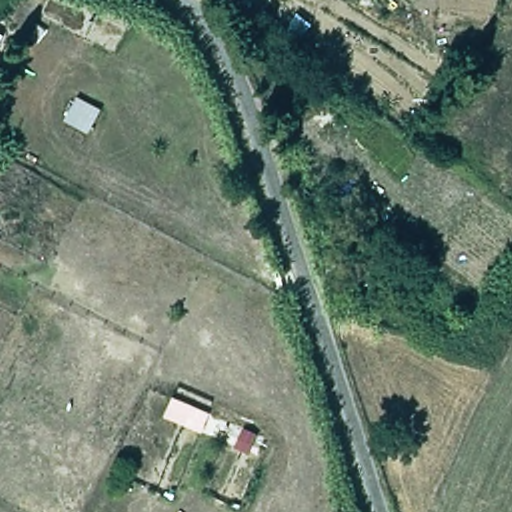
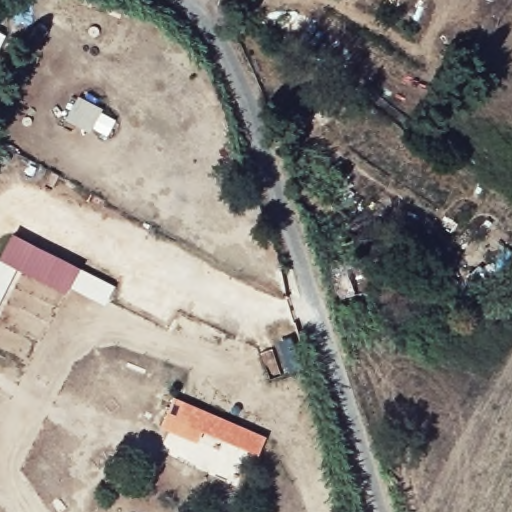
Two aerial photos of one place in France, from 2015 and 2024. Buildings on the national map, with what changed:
unchanged [(102,109),(87,135),(59,119),(77,94),(102,109)]
new [(104,304),(69,287),(64,294),(16,270),(0,301),(0,253),(10,234),(114,286),(104,304)]
unchanged [(346,252),(356,292),(337,298),(325,258),(346,252)]
new [(252,458),(164,425),(175,397),(259,437),(252,458)]

